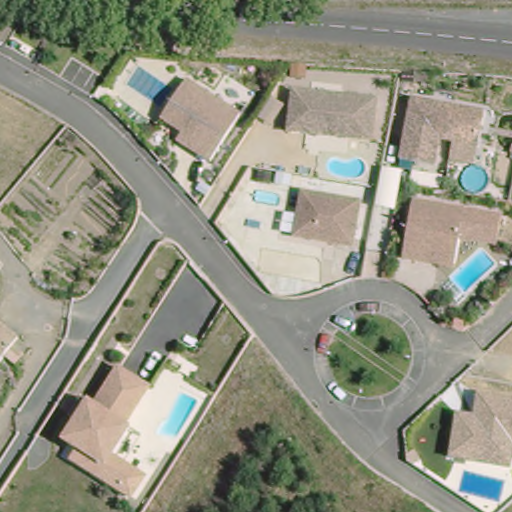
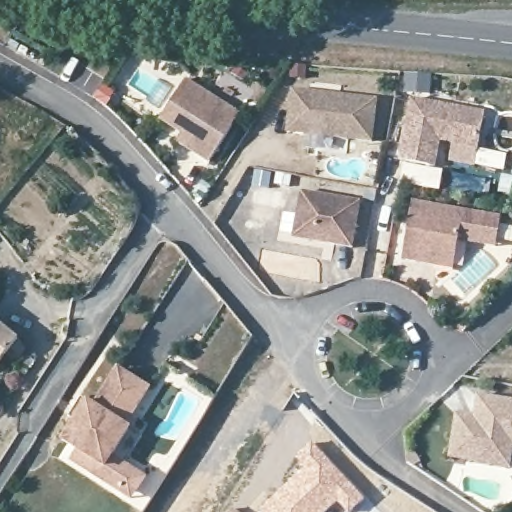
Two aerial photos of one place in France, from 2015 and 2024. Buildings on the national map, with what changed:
unchanged [(244,112),(212,163),(178,142),(183,135),(160,122),(190,77),(244,112)]
unchanged [(378,140),(290,132),(294,89),(382,97),(378,140)]
unchanged [(490,111),(485,146),(442,141),(437,164),(400,159),(414,97),(490,111)]
unchanged [(364,203),(357,245),(296,236),(304,191),(364,203)]
unchanged [(504,241),(461,236),(457,267),(405,258),(415,200),(504,213),(504,241)]
unchanged [(0,367),(0,326),(19,338),(0,367)]
unchanged [(156,388),(132,427),(147,436),(129,464),(150,478),(135,501),(70,458),(74,449),(62,441),(87,399),(96,402),(120,366),(156,388)]
unchanged [(512,398),(512,466),(454,458),(459,412),(477,413),(480,393),(512,398)]
new [(296,458),(313,442),(365,498),(350,512),(346,512),(337,503),(328,512),(259,512),(257,510),(303,466),(296,458)]

